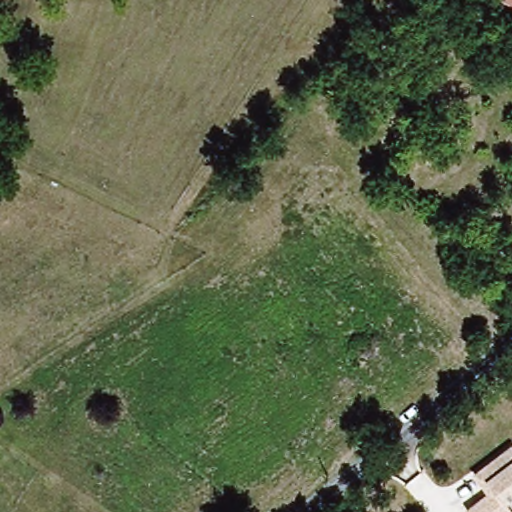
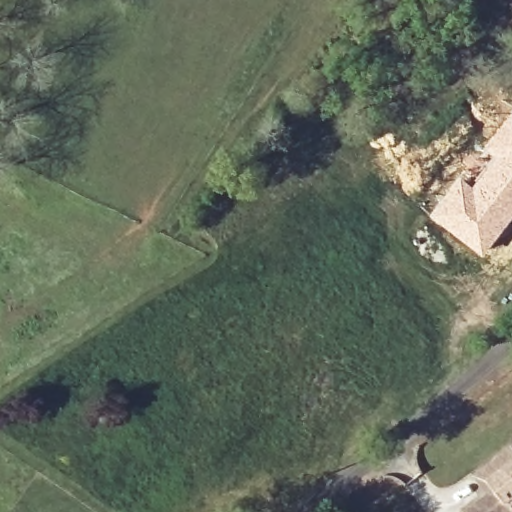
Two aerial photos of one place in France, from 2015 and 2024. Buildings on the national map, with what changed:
unchanged [(512,0),(512,5),(503,0),(512,0)]
new [(474,183),(493,156),(482,148),(512,110),(512,220),(484,256),(429,217),(461,174),(474,183)]
unchanged [(509,512),(480,512),(476,507),(488,498),(474,479),(498,461),(512,450),(512,501),(505,506),(509,512)]

